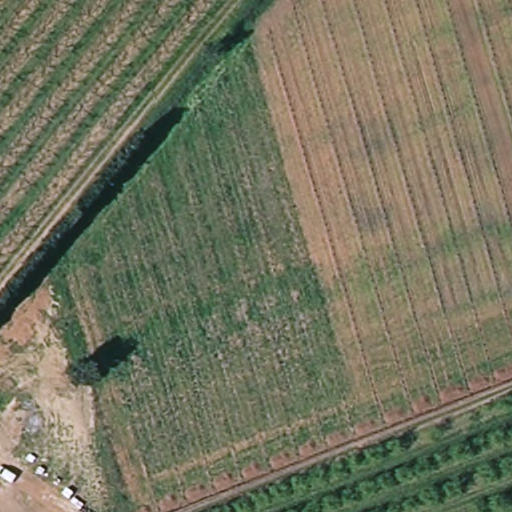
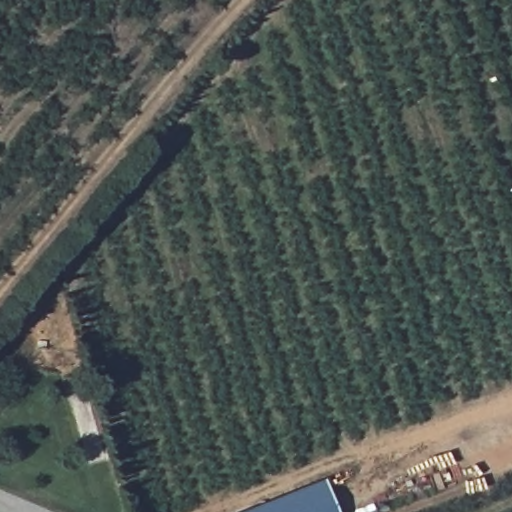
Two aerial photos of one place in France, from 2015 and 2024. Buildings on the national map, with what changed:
new [(339,512),(238,512),(324,476),(339,512)]

